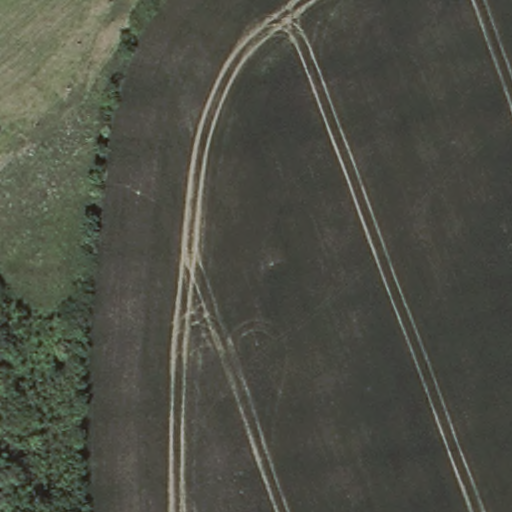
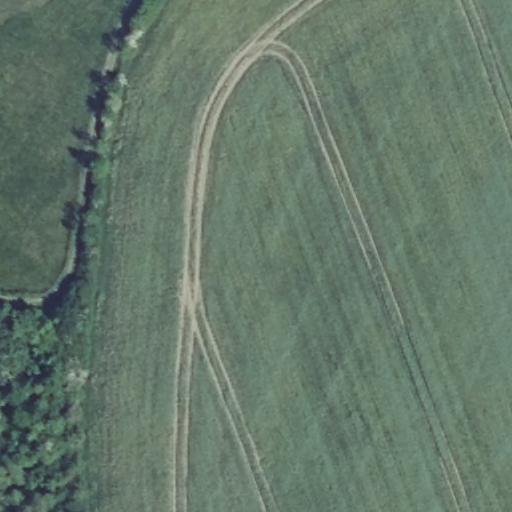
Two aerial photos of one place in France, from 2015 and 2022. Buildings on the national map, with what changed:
[]

